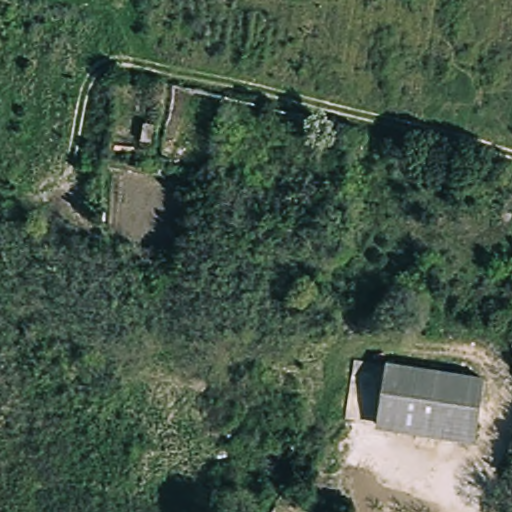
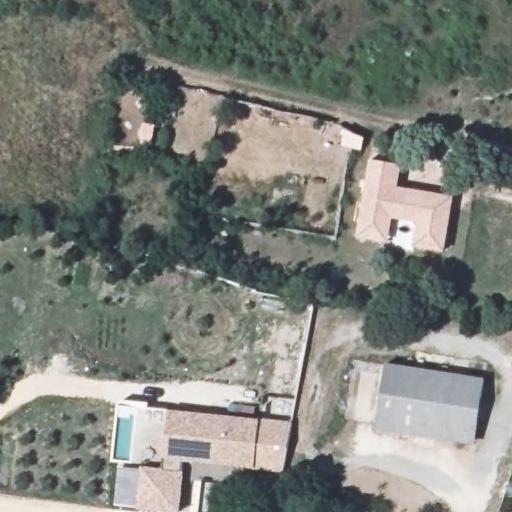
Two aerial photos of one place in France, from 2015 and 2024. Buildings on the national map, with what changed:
unchanged [(354,148),(345,149),(336,144),(338,126),(357,135),(354,148)]
new [(399,187),(453,197),(444,252),(412,247),(416,223),(393,219),(389,243),(356,238),(369,159),(402,165),(399,187)]
unchanged [(388,363),(482,382),(487,382),(475,441),(469,440),(376,421),(388,363)]
new [(183,462),(181,473),(184,474),(180,512),(158,512),(137,510),(141,468),(163,471),(164,460),(167,411),(259,420),(290,423),(283,474),(254,470),(183,462)]

